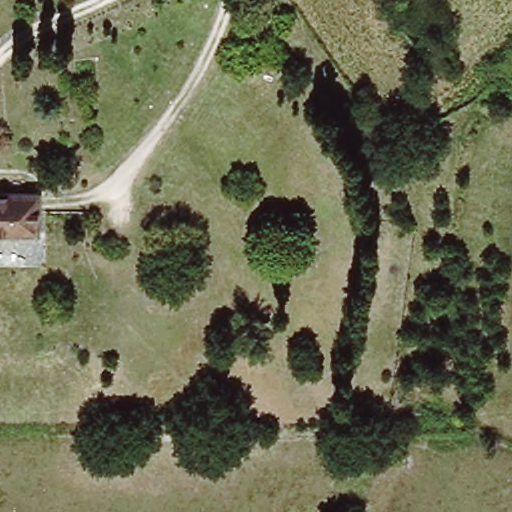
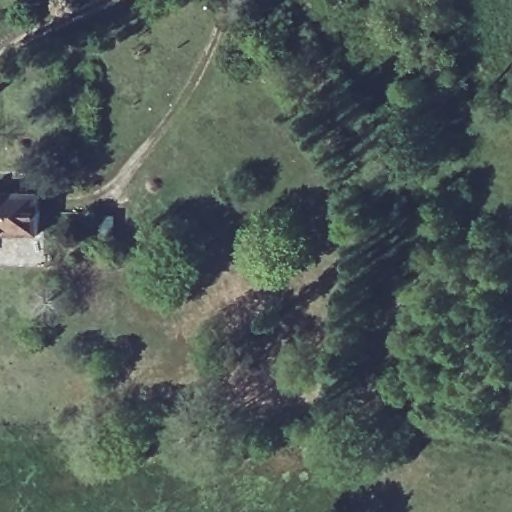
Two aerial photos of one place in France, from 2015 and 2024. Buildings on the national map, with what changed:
unchanged [(44,196),(40,236),(0,233),(0,194),(44,196)]

